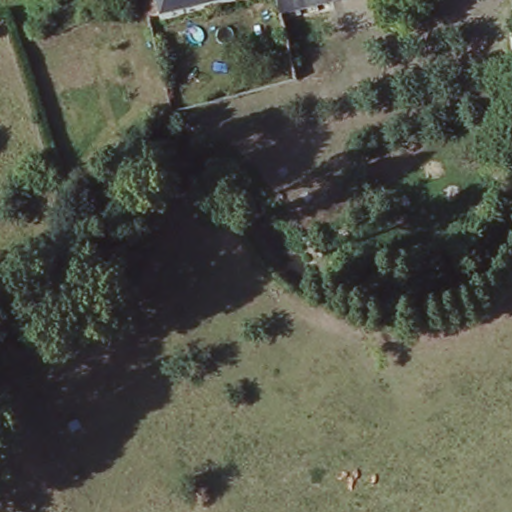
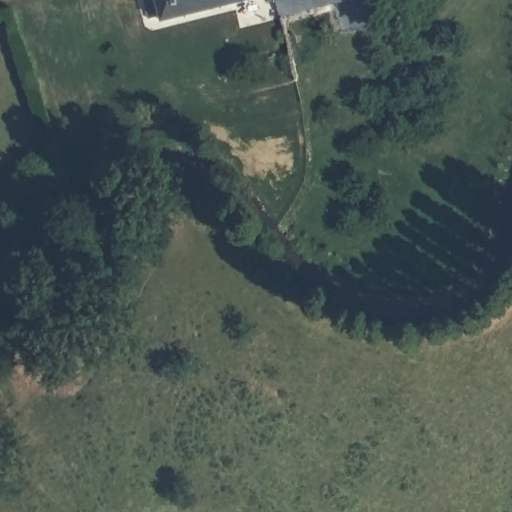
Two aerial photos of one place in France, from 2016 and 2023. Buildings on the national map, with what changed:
unchanged [(258,0),(156,25),(155,18),(144,20),(137,0),(258,0)]
unchanged [(267,0),(278,0),(268,3),(267,0)]
unchanged [(268,3),(278,0),(335,0),(274,18),(268,3)]

